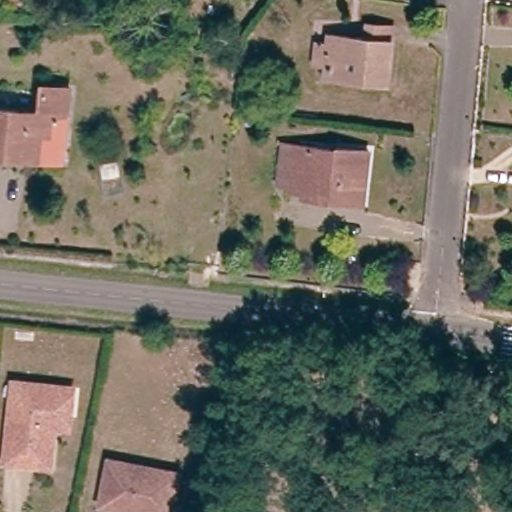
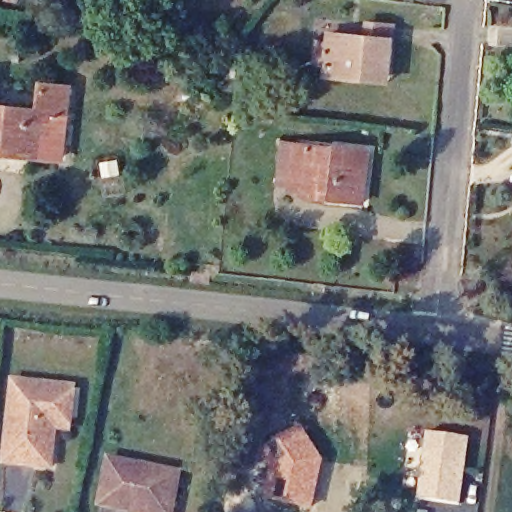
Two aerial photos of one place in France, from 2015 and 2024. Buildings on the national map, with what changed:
unchanged [(331,79),(331,63),(318,62),(319,44),(334,45),(334,35),(373,39),(374,27),(398,29),(397,41),(393,83),(331,79)]
unchanged [(72,118),(67,118),(63,159),(0,151),(0,107),(45,111),(48,84),(76,89),(72,118)]
unchanged [(368,198),(304,192),(304,187),(278,184),(283,139),(374,148),(368,198)]
unchanged [(46,464),(10,461),(18,379),(59,384),(68,384),(64,424),(55,424),(50,423),(46,464)]
new [(253,477),(259,456),(256,448),(297,419),(324,459),(311,509),(248,496),(253,477)]
new [(427,433),(470,439),(460,504),(417,499),(427,433)]
unchanged [(180,470),(175,512),(137,512),(104,509),(108,463),(180,470)]

